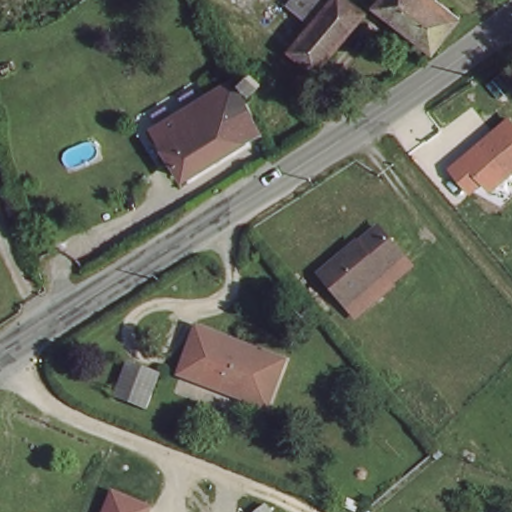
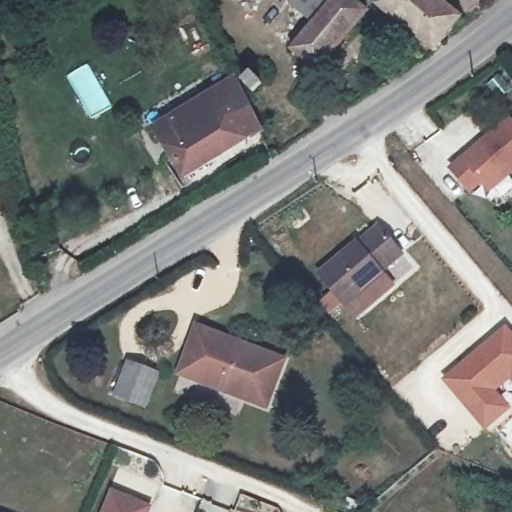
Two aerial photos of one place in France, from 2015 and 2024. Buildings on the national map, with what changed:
unchanged [(290,3),(292,0),(355,0),(368,13),(326,78),(293,49),(309,24),(290,3)]
unchanged [(383,0),(438,0),(458,15),(434,47),(379,5),(383,0)]
unchanged [(255,79),(263,89),(253,96),(246,85),(255,79)]
unchanged [(176,118),(181,124),(237,85),(260,134),(187,179),(158,130),(176,118)]
unchanged [(495,112),(512,134),(512,148),(473,181),(466,173),(453,184),(438,162),(495,112)]
unchanged [(356,321),(316,273),(380,225),(419,266),(356,321)]
new [(507,325),(512,332),(512,382),(510,380),(497,391),(511,408),(485,431),(442,380),(507,325)]
unchanged [(249,394),(186,372),(195,345),(199,330),(215,335),(263,351),(249,394)]
unchanged [(159,372),(149,401),(117,390),(127,362),(159,372)]
unchanged [(115,496),(151,512),(108,512),(115,496)]

